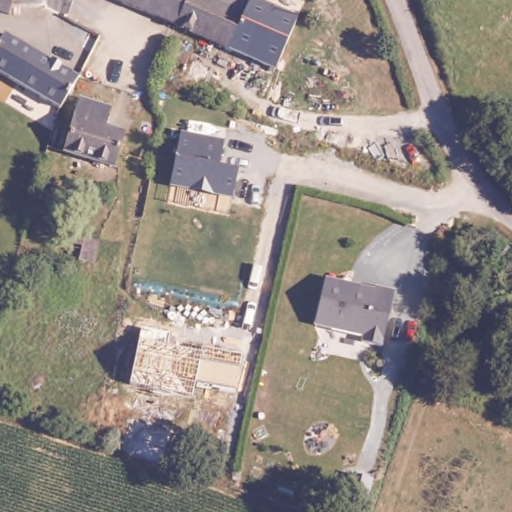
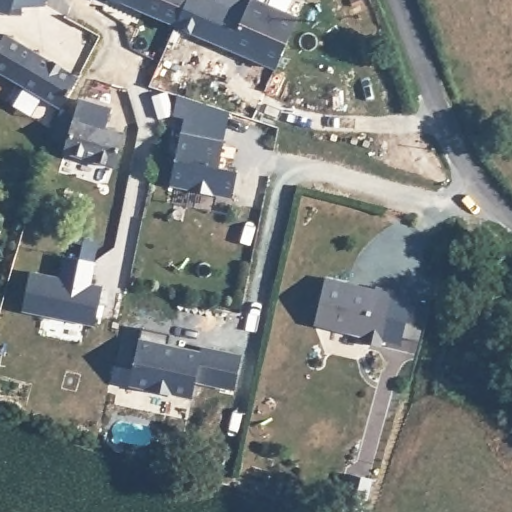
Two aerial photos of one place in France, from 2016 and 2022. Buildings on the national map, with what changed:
unchanged [(39,2),(17,2),(17,9),(4,10),(0,9),(0,0),(39,0),(39,2)]
unchanged [(111,0),(181,0),(171,25),(111,0)]
unchanged [(181,0),(205,0),(209,2),(209,0),(249,0),(292,18),(271,68),(171,25),(181,0)]
unchanged [(0,72),(0,42),(5,34),(79,77),(60,109),(0,72)]
new [(223,138),(206,135),(207,122),(185,119),(174,116),(177,95),(230,112),(224,138),(223,138)]
unchanged [(110,113),(104,132),(123,138),(112,172),(65,157),(81,105),(110,113)]
unchanged [(171,187),(180,132),(185,119),(207,122),(206,135),(224,138),(218,166),(237,169),(231,199),(171,187)]
new [(102,287),(93,325),(22,311),(31,271),(59,277),(64,255),(79,259),(84,236),(98,240),(93,262),(89,284),(102,287)]
demolished [(79,259),(84,236),(98,240),(93,262),(79,259)]
unchanged [(348,283),(375,289),(375,287),(393,291),(381,346),(361,342),(362,336),(313,324),(325,278),(348,283)]
unchanged [(240,353),(234,390),(194,381),(190,399),(129,387),(141,328),(170,334),(167,343),(202,351),(202,345),(240,353)]

